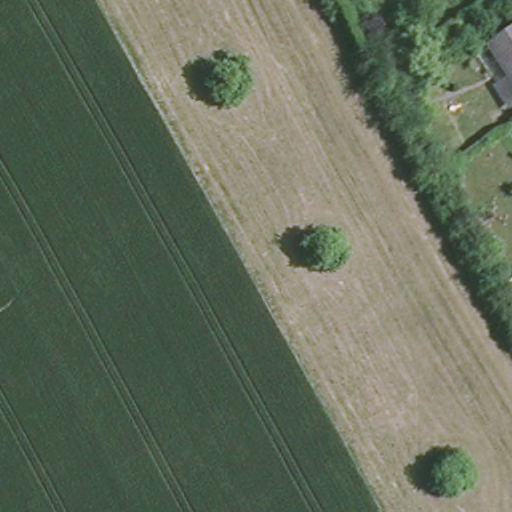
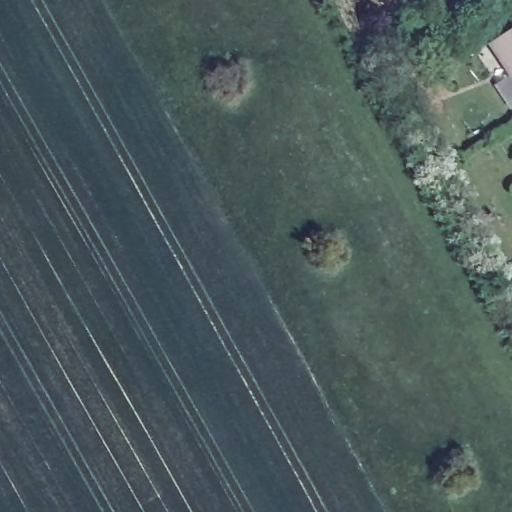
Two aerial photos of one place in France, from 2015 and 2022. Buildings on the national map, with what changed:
unchanged [(486,38),(512,21),(512,78),(486,38)]

